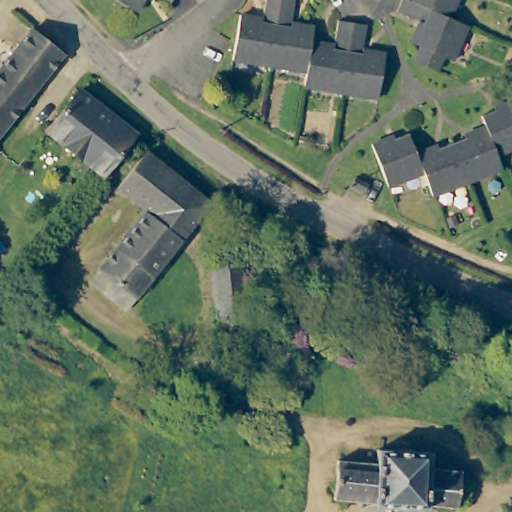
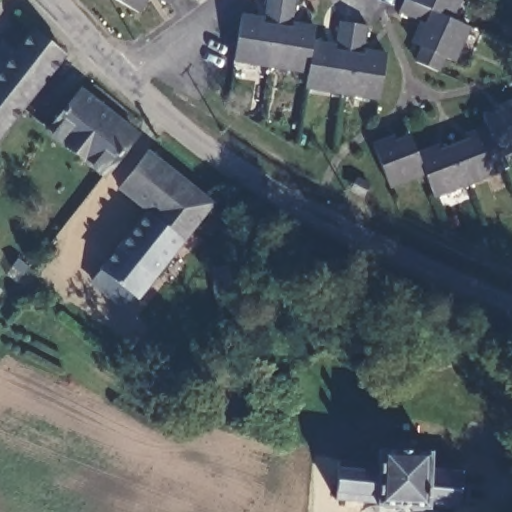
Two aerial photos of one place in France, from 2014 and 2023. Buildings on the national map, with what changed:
unchanged [(112,0),(143,0),(136,14),(112,0)]
unchanged [(152,0),(174,0),(169,9),(152,0)]
unchanged [(468,27),(451,62),(441,61),(434,74),(411,60),(418,47),(410,42),(417,30),(421,32),(426,24),(400,10),(401,0),(457,0),(448,17),(468,27)]
unchanged [(265,26),(271,1),(287,3),(297,5),(292,30),(302,31),(302,27),(317,30),(314,46),(327,49),(326,55),(331,56),(341,20),(347,29),(362,31),(357,61),(367,63),(367,56),(386,59),(378,105),(307,91),(310,76),(233,63),(239,18),(265,26)]
unchanged [(0,69),(33,27),(65,52),(0,130),(0,69)]
unchanged [(102,180),(47,136),(81,92),(137,135),(102,180)]
unchanged [(370,146),(390,138),(391,141),(410,134),(417,155),(437,146),(441,156),(472,144),(468,134),(486,126),(483,120),(491,116),(489,112),(512,103),(512,150),(496,155),(501,168),(435,195),(424,171),(386,185),(370,146)]
unchanged [(215,208),(124,313),(89,282),(150,215),(122,190),(152,154),(215,208)]
unchanged [(362,200),(365,192),(374,195),(371,204),(362,200)]
unchanged [(245,257),(251,325),(222,328),(215,257),(240,256),(245,257)]
unchanged [(382,471),(384,454),(423,456),(422,471),(457,473),(457,512),(439,512),(338,506),(340,468),(382,471)]

